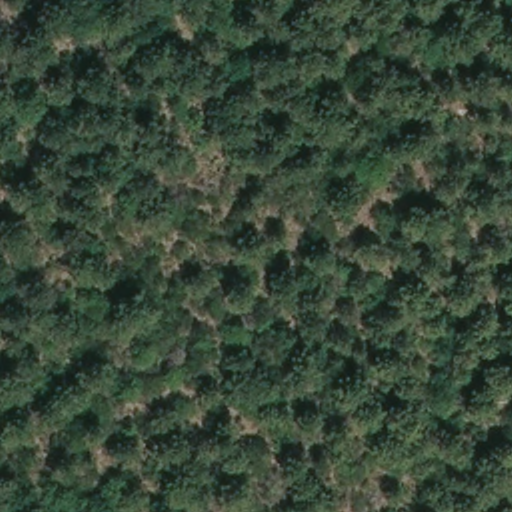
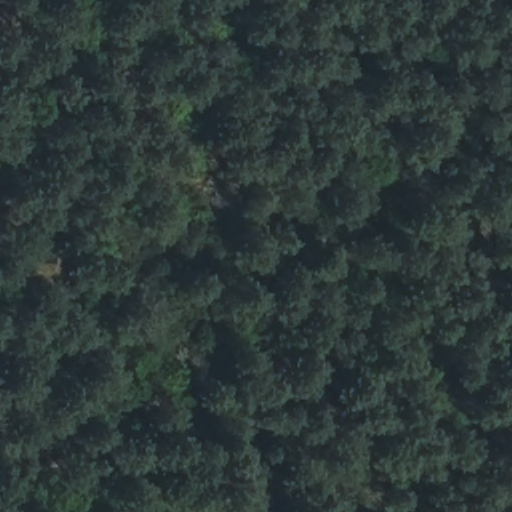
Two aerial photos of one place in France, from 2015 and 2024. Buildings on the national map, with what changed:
[]

